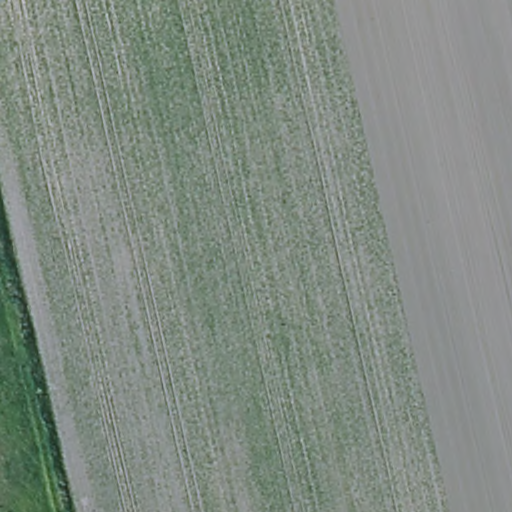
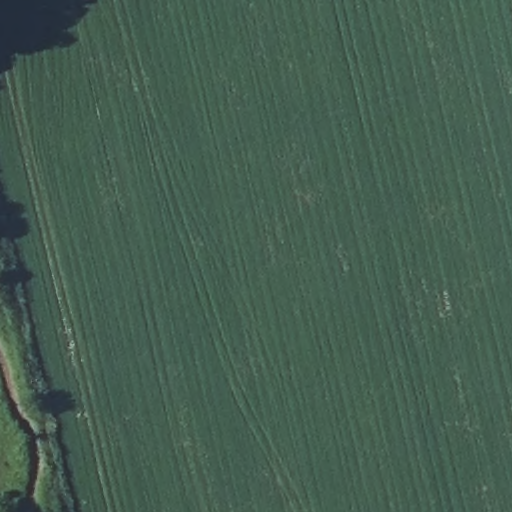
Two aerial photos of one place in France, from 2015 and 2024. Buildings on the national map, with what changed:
[]

